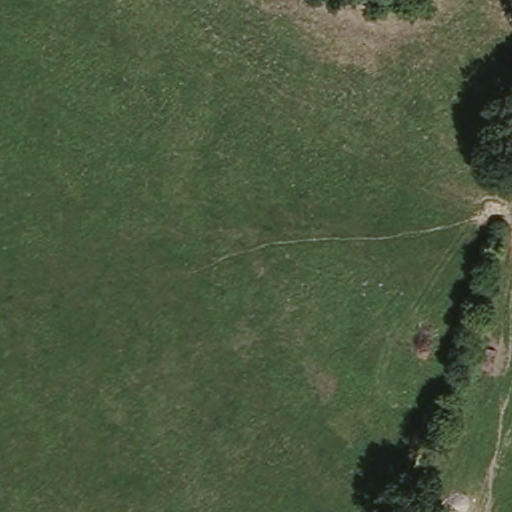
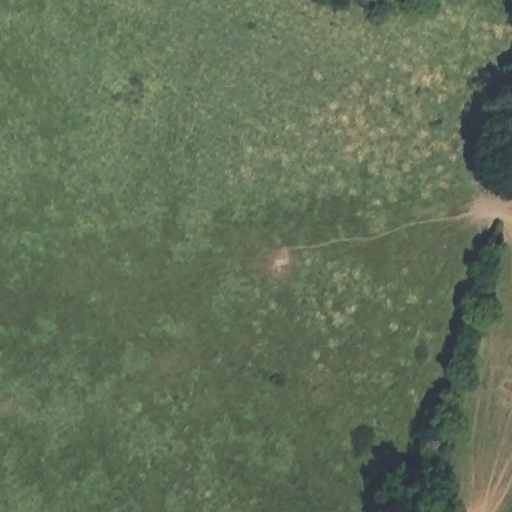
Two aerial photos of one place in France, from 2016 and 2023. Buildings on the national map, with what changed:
[]

